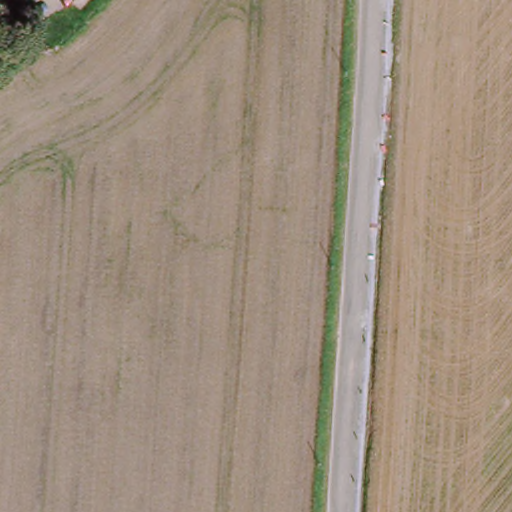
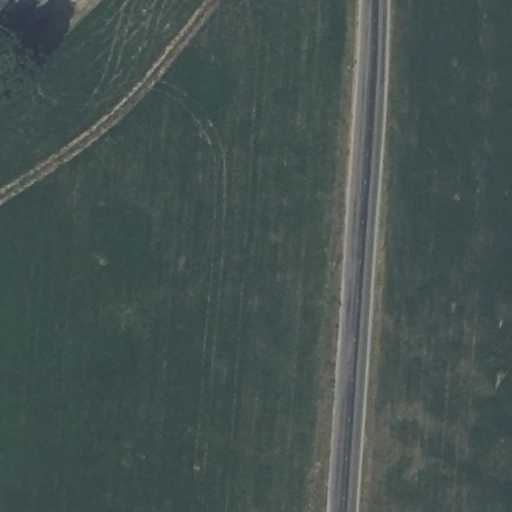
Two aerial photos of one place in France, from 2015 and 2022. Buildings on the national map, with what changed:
unchanged [(0,6),(0,0),(21,0),(6,13),(0,6)]

